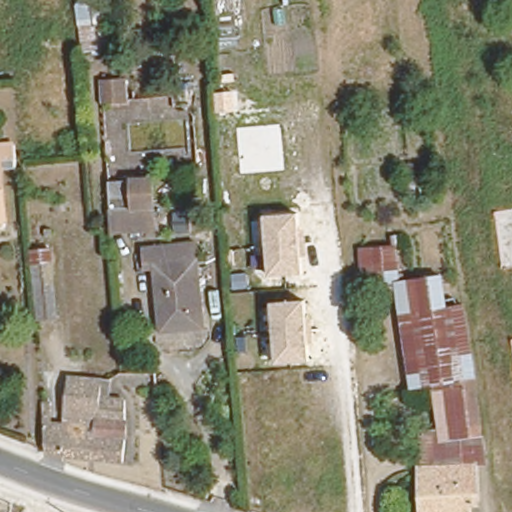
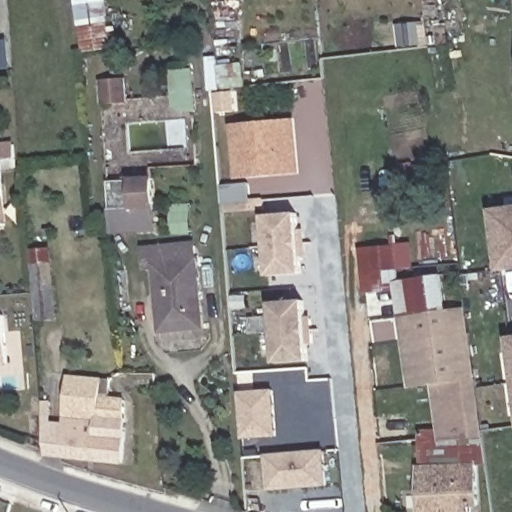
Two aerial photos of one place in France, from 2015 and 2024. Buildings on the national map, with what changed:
unchanged [(102,11),(105,38),(84,41),(81,13),(102,11)]
new [(5,48),(7,66),(0,67),(0,49),(5,48)]
new [(217,56),(219,66),(245,63),(246,88),(237,89),(234,94),(230,95),(230,103),(235,103),(236,111),(215,113),(210,57),(217,56)]
unchanged [(98,87),(117,84),(120,108),(100,111),(98,87)]
new [(235,179),(230,124),(295,118),(299,173),(235,179)]
unchanged [(8,150),(9,160),(10,172),(0,173),(0,151),(8,150)]
unchanged [(149,195),(150,220),(106,223),(104,198),(149,195)]
new [(490,208),(512,206),(512,271),(498,272),(490,208)]
unchanged [(303,277),(269,280),(264,215),(298,211),(303,277)]
unchanged [(142,251),(195,246),(197,267),(155,270),(144,271),(142,251)]
unchanged [(430,389),(405,393),(396,306),(361,305),(356,250),(392,248),(396,287),(437,283),(441,308),(465,305),(489,479),(476,483),(476,512),(419,512),(416,431),(435,428),(430,389)]
unchanged [(59,319),(40,321),(34,250),(53,249),(59,319)]
unchanged [(204,331),(162,335),(155,270),(197,267),(204,331)]
unchanged [(312,362),(277,366),(272,304),(306,301),(312,362)]
new [(4,315),(7,362),(0,363),(0,315),(4,315)]
new [(512,336),(512,373),(507,337),(512,336)]
unchanged [(52,394),(54,409),(65,410),(70,365),(111,369),(110,385),(125,387),(122,407),(129,408),(125,458),(47,445),(46,440),(42,393),(52,394)]
new [(270,388),(273,433),(241,436),(237,391),(270,388)]
new [(267,491),(264,455),(325,450),(328,486),(267,491)]

